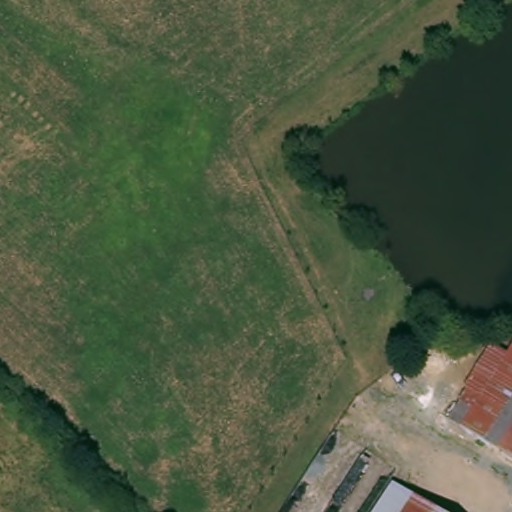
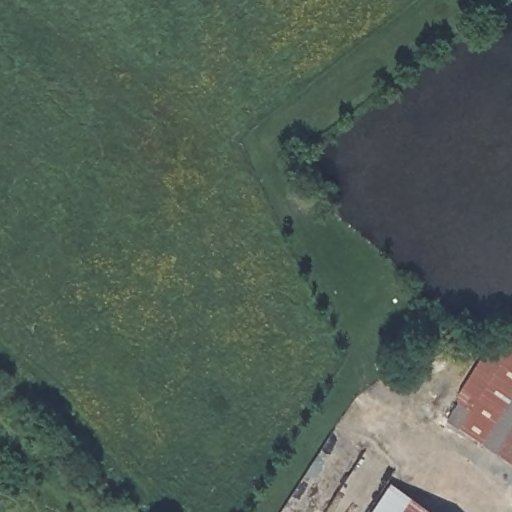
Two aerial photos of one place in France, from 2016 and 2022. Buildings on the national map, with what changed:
unchanged [(454,412),(466,393),(482,402),(512,356),(512,448),(454,412)]
unchanged [(378,512),(399,480),(447,512),(378,512)]

